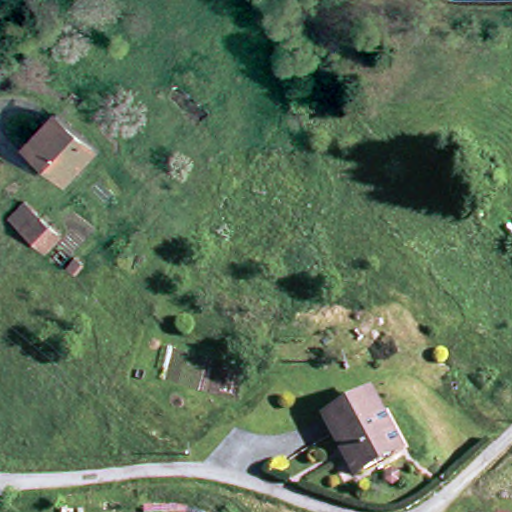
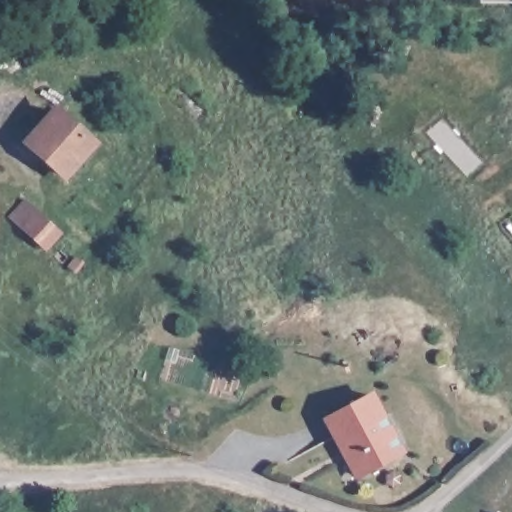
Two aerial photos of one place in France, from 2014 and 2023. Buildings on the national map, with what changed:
unchanged [(45,109),(89,141),(65,174),(22,142),(45,109)]
unchanged [(41,217),(40,218),(66,237),(53,255),(21,232),(20,235),(3,222),(19,201),(41,217)]
unchanged [(395,456),(360,473),(332,416),(376,393),(387,415),(404,452),(395,456)]

